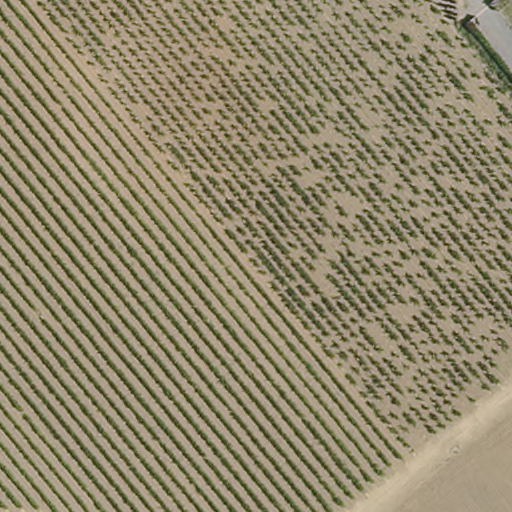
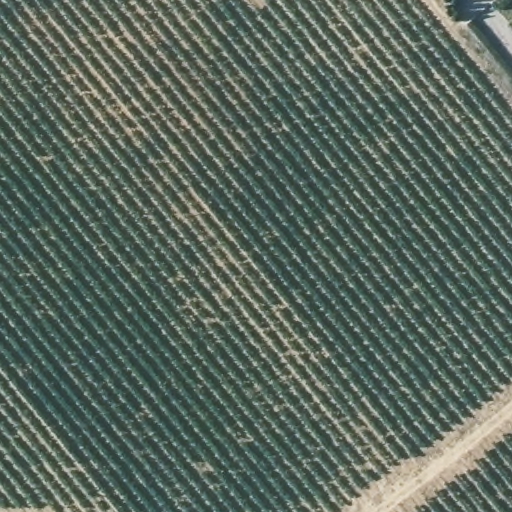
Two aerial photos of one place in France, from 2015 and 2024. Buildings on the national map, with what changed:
[]

